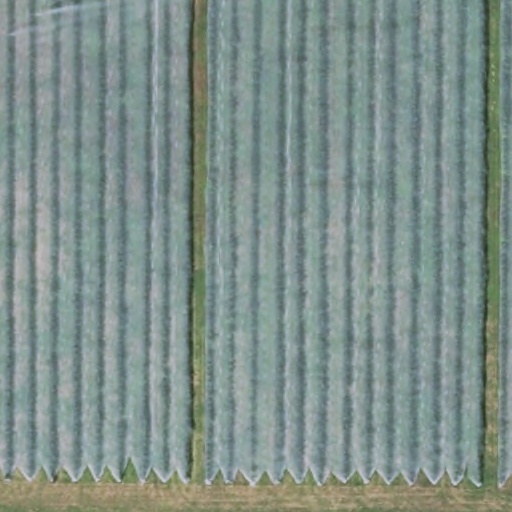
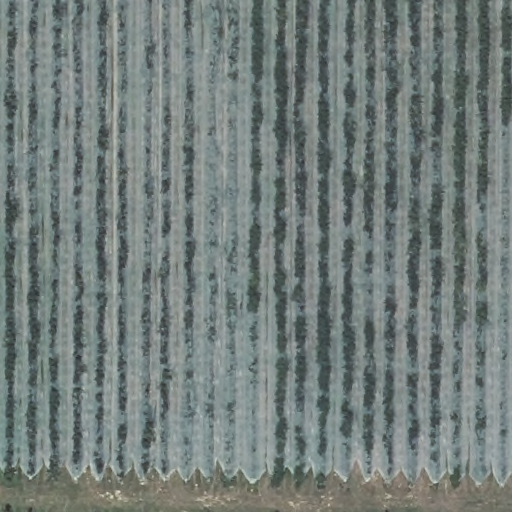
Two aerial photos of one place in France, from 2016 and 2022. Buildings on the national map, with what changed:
[]

